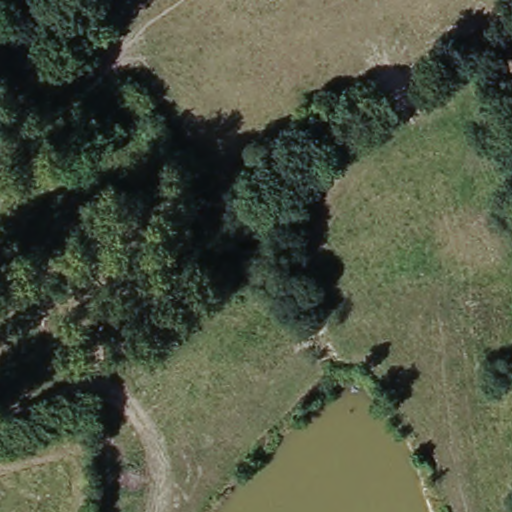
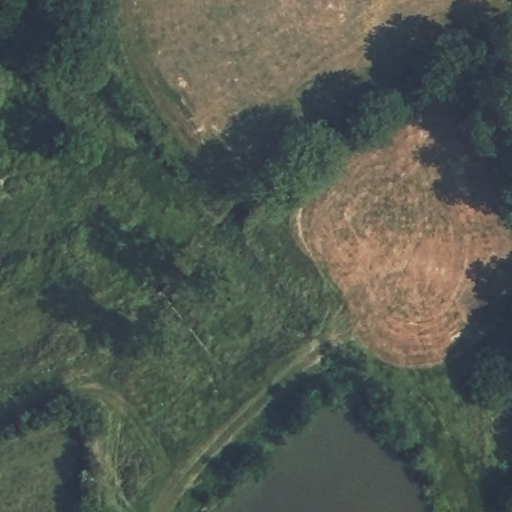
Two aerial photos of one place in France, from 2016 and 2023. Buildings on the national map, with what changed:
[]

